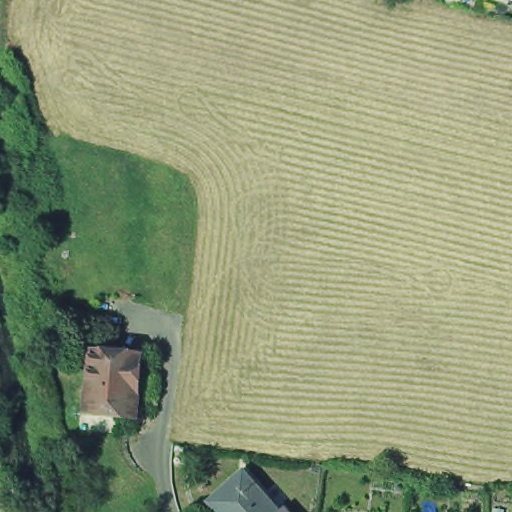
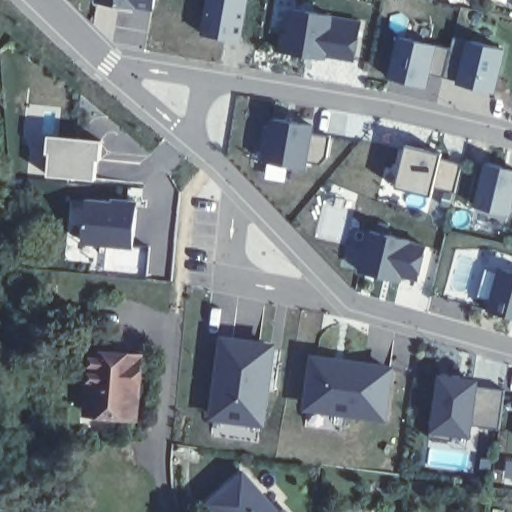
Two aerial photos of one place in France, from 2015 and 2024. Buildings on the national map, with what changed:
new [(155,16),(91,7),(92,0),(157,0),(155,16)]
new [(243,45),(199,40),(204,0),(250,0),(243,45)]
new [(364,22),(353,71),(275,57),(290,10),(364,22)]
new [(442,44),(430,94),(381,79),(390,30),(442,44)]
new [(510,49),(496,95),(445,78),(464,35),(510,49)]
new [(313,115),(306,166),(254,161),(266,111),(313,115)]
new [(101,135),(99,180),(43,177),(44,131),(101,135)]
new [(414,138),(442,145),(442,154),(463,160),(456,194),(433,187),(431,198),(394,186),(404,141),(414,138)]
new [(511,203),(511,217),(471,211),(480,159),(512,163),(512,203),(511,203)]
new [(138,198),(131,245),(81,244),(85,194),(138,198)]
new [(425,236),(414,281),(356,268),(365,222),(425,236)]
new [(494,312),(507,266),(512,267),(512,316),(494,312)]
new [(273,341),(272,428),(206,423),(211,332),(273,341)]
new [(393,362),(387,421),(301,411),(308,349),(393,362)]
unchanged [(91,390),(94,353),(142,356),(138,418),(99,416),(89,415),(91,390)]
new [(475,375),(469,440),(432,435),(436,370),(475,375)]
unchanged [(239,472),(275,512),(213,512),(206,505),(239,472)]

